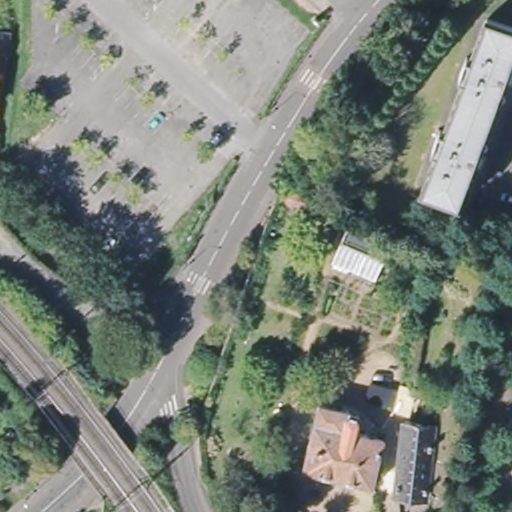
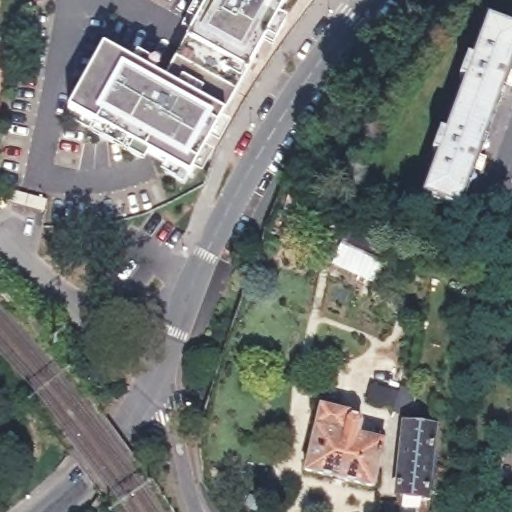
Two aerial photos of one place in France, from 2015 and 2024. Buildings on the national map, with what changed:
new [(67,108),(102,46),(168,81),(190,38),(208,0),(287,0),(188,174),(67,108)]
unchanged [(468,57),(474,59),(490,18),(512,26),(512,59),(458,207),(423,193),(438,154),(432,151),(441,130),(447,132),(466,80),(460,78),(468,57)]
unchanged [(4,53),(0,74),(0,52),(4,53)]
new [(10,191),(29,196),(27,205),(8,201),(10,191)]
new [(30,196),(48,201),(46,210),(27,206),(30,196)]
unchanged [(345,238),(386,256),(379,273),(337,255),(345,238)]
unchanged [(307,473),(305,472),(317,405),(347,412),(346,416),(356,418),(360,422),(357,435),(382,440),(372,486),(307,473)]
unchanged [(411,415),(414,416),(410,443),(396,440),(392,439),(393,433),(364,427),(367,410),(397,415),(398,413),(411,415)]
unchanged [(0,444),(0,439),(6,432),(15,438),(7,449),(0,444)]
unchanged [(402,449),(433,452),(428,512),(397,512),(402,449)]

